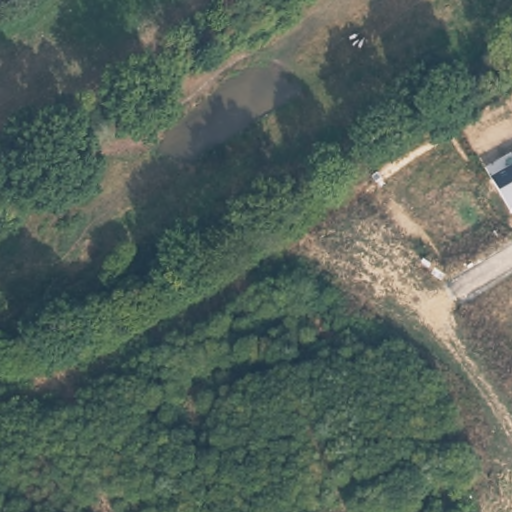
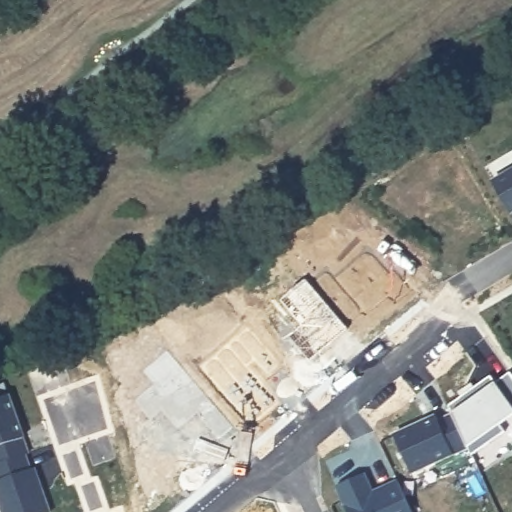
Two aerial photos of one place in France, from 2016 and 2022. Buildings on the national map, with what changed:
unchanged [(512,170),(512,215),(492,181),(512,170)]
new [(438,418),(450,413),(453,411),(449,405),(492,377),(495,382),(509,372),(512,376),(512,415),(499,424),(505,431),(472,453),(469,446),(467,447),(453,455),(413,475),(393,433),(436,414),(438,418)]
new [(24,437),(23,438),(28,453),(0,462),(0,397),(9,394),(24,437)]
new [(0,509),(0,462),(26,453),(31,469),(35,468),(51,512),(1,512),(0,509)]

